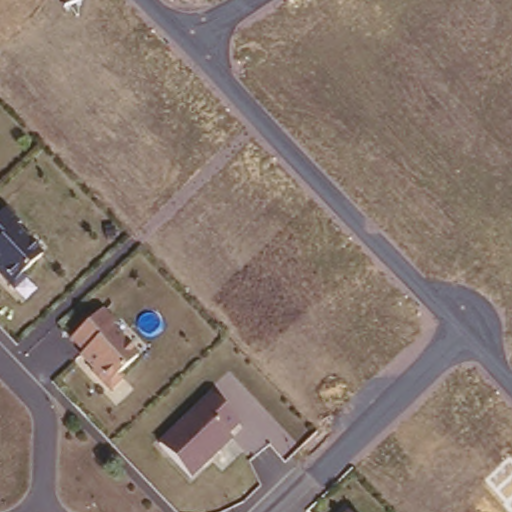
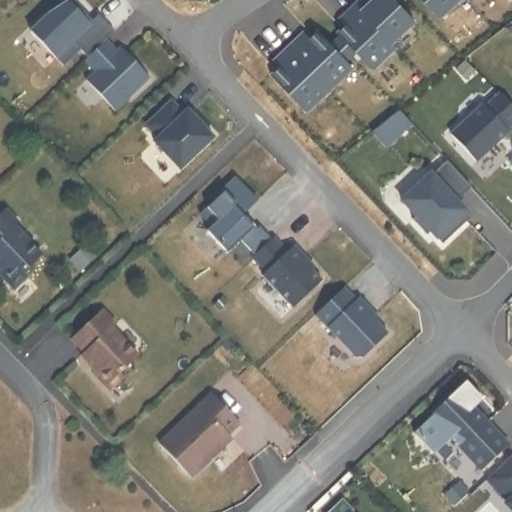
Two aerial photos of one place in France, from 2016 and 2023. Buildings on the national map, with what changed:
new [(85,55),(77,47),(60,64),(27,30),(46,13),(65,0),(68,0),(87,21),(96,12),(112,29),(103,37),(104,37),(85,55)]
new [(90,18),(87,21),(67,0),(73,0),(90,18)]
new [(411,18),(388,40),(352,2),(353,0),(394,0),(411,18)]
new [(436,15),(422,0),(452,0),(436,15)]
new [(352,2),(392,45),(369,67),(334,31),(346,19),(342,15),(340,13),(352,2)]
new [(342,23),(338,19),(342,15),(346,19),(342,23)]
new [(296,34),(301,40),(313,28),(348,65),(326,87),(285,44),(296,34)]
new [(302,32),(306,35),(301,40),(297,36),(302,32)]
new [(337,33),(352,50),(343,59),(327,43),(337,33)]
new [(147,76),(112,108),(83,78),(92,69),(82,58),(104,37),(114,48),(117,45),(147,76)]
new [(285,44),(326,87),(302,109),(267,73),(280,61),(273,55),(285,44)]
new [(276,57),(280,61),(275,65),(271,62),(276,57)]
new [(503,128),(505,130),(473,160),(448,133),(480,103),(482,106),(497,92),(512,107),(512,119),(503,128)]
new [(211,135),(177,167),(151,139),(155,136),(143,123),(168,99),(180,112),(185,108),(211,135)]
new [(368,130),(375,125),(396,108),(410,123),(390,142),(384,147),(368,130)]
new [(469,186),(454,200),(469,215),(440,243),(428,230),(424,233),(410,218),(413,214),(399,199),(428,172),(430,173),(444,159),(469,186)]
new [(253,227),(256,224),(268,237),(252,252),(238,238),(225,251),(204,228),(209,224),(197,212),(221,190),(219,189),(232,175),(254,198),(239,213),(253,227)]
unchanged [(12,290),(0,276),(0,213),(4,210),(46,258),(12,290)]
new [(318,278),(290,306),(259,273),(262,270),(249,255),(271,235),(284,249),(291,243),(302,255),(299,257),(318,278)]
new [(385,332),(360,356),(353,356),(312,313),(341,285),(353,298),(356,295),(368,309),(366,312),(385,332)]
unchanged [(141,361),(110,391),(70,344),(102,314),(141,361)]
new [(478,397),(467,407),(482,422),(483,421),(505,443),(478,469),(447,436),(430,452),(412,433),(429,417),(427,414),(452,391),(463,381),(478,397)]
unchanged [(239,427),(189,477),(156,442),(207,395),(239,427)]
new [(503,502),(505,500),(483,477),(507,455),(512,460),(512,511),(503,502)]

